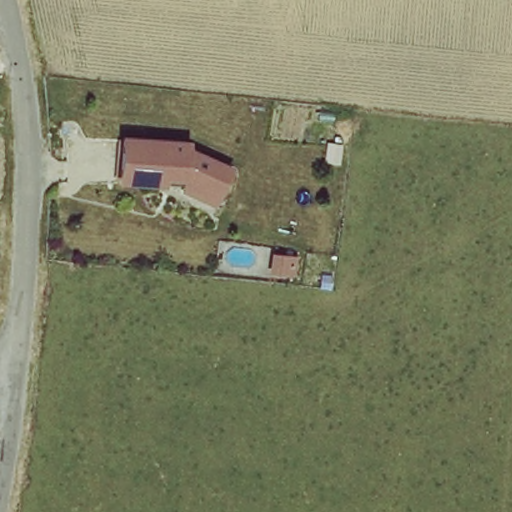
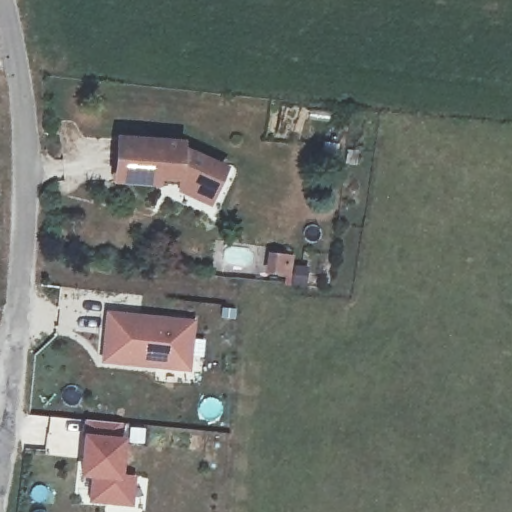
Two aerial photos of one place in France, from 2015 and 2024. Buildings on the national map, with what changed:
unchanged [(177,138),(177,144),(218,165),(206,189),(174,173),(152,171),(152,177),(111,173),(115,132),(177,138)]
new [(196,319),(189,371),(100,362),(107,310),(196,319)]
new [(120,438),(124,439),(122,474),(135,477),(132,506),(90,501),(92,479),(80,477),(82,436),(84,420),(122,423),(120,438)]

